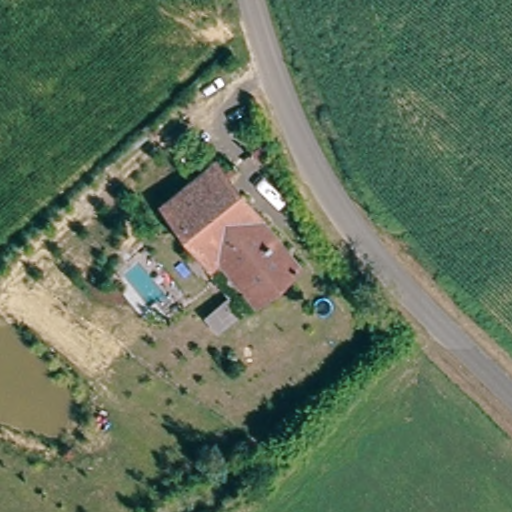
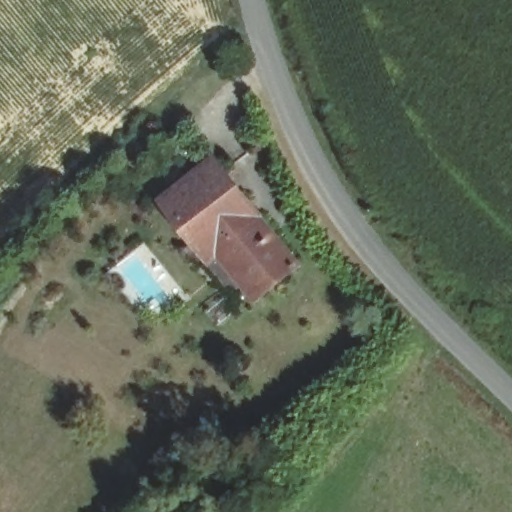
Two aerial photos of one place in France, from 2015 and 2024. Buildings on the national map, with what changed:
unchanged [(210,260),(163,200),(216,157),(301,265),(257,300),(239,277),(230,285),(210,260)]

